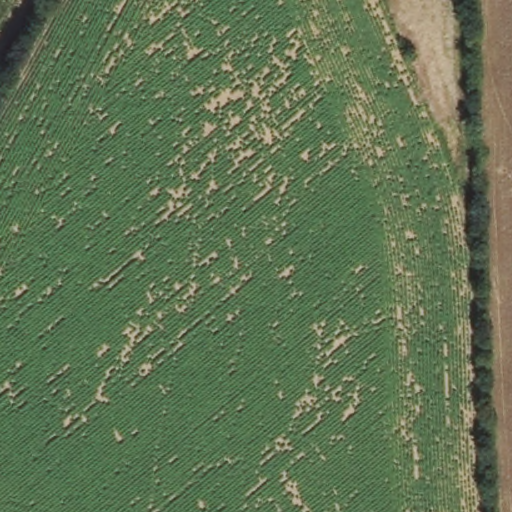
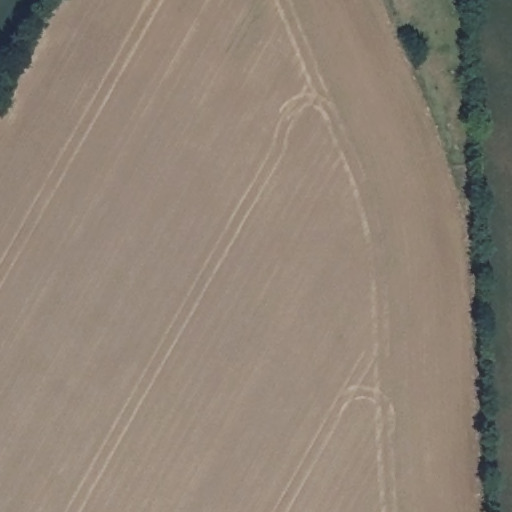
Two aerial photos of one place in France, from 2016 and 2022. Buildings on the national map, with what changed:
[]

